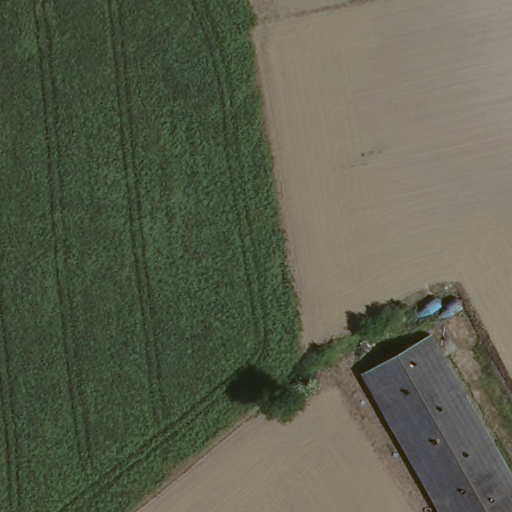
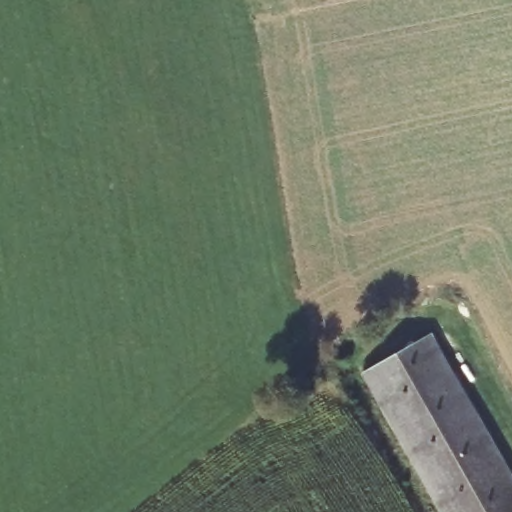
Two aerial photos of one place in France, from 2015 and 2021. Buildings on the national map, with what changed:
unchanged [(430,335),(512,479),(512,512),(443,512),(364,372),(430,335)]

